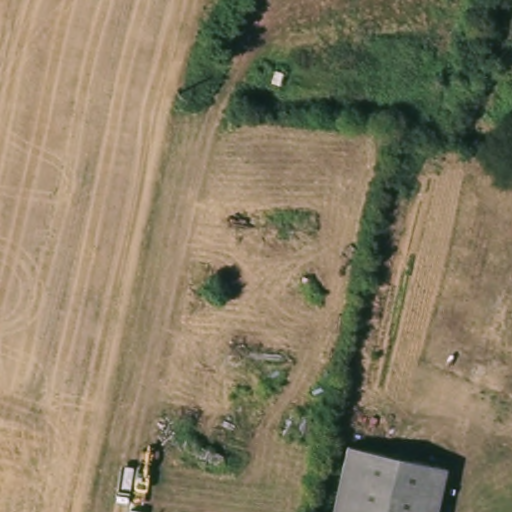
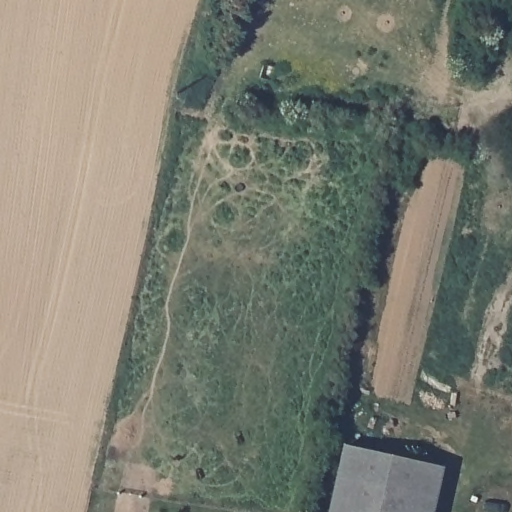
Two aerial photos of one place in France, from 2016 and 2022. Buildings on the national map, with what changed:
unchanged [(444,470),(437,512),(333,512),(344,447),(444,470)]

